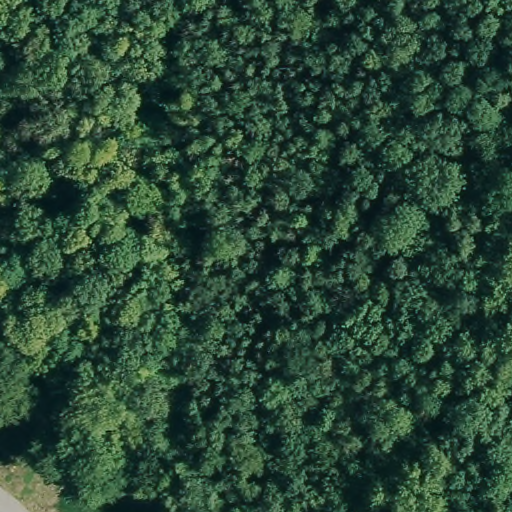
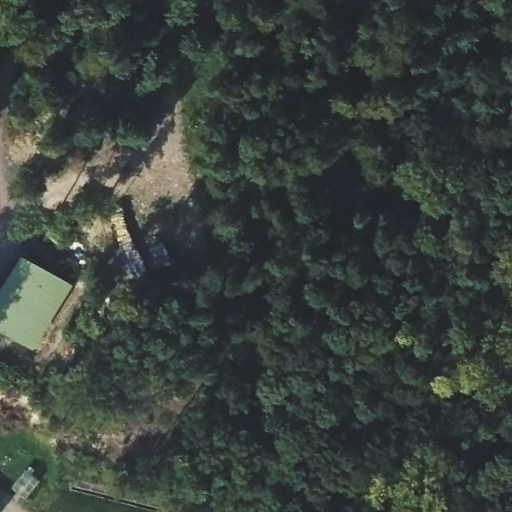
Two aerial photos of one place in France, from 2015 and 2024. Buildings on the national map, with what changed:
new [(33,348),(0,328),(0,290),(22,254),(73,286),(33,348)]

